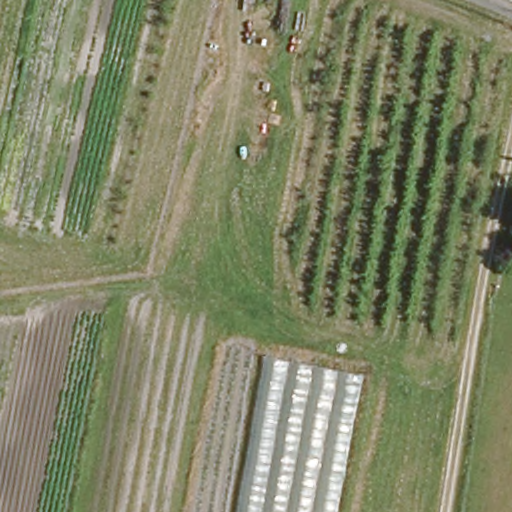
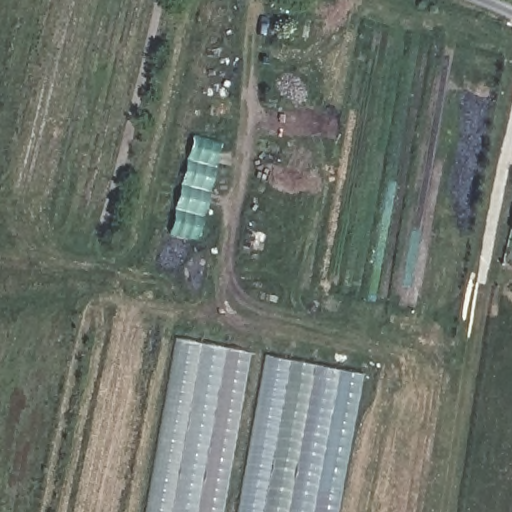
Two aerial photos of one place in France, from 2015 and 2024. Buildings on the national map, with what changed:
new [(143,512),(175,337),(249,352),(220,512),(143,512)]
unchanged [(239,512),(266,357),(367,375),(343,512),(239,512)]

